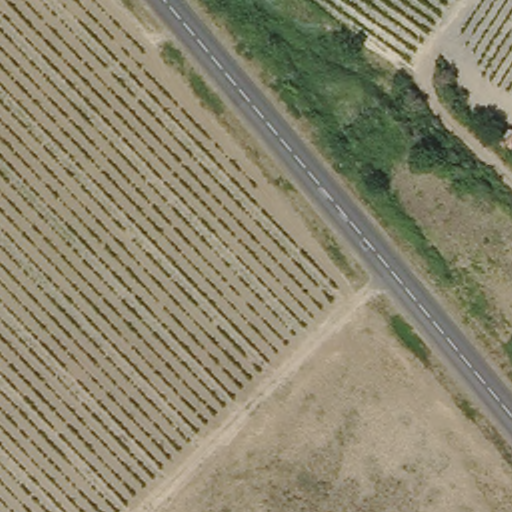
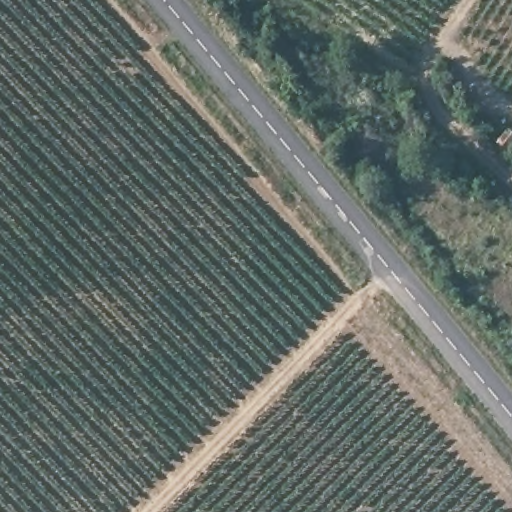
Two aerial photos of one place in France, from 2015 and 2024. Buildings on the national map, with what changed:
unchanged [(499,135),(512,122),(512,145),(511,146),(499,135)]

